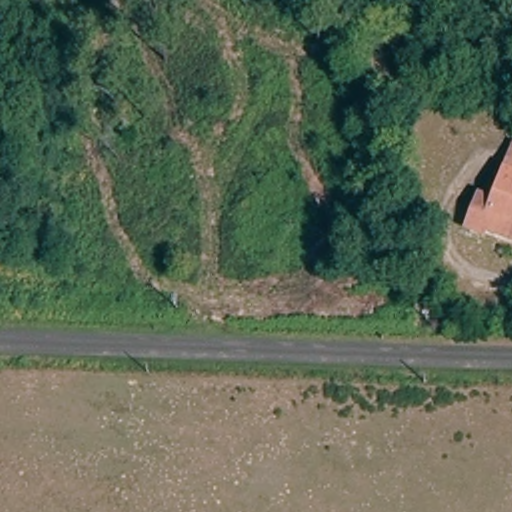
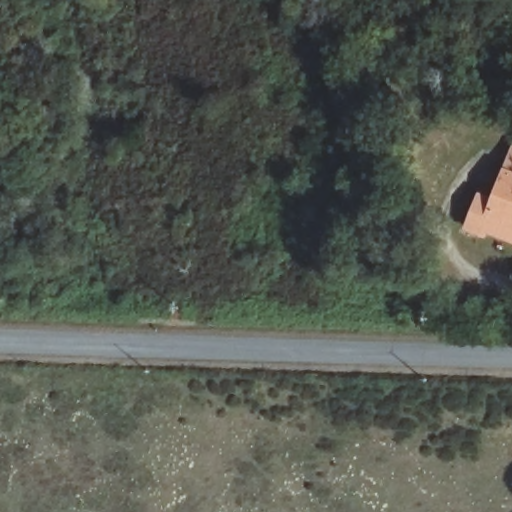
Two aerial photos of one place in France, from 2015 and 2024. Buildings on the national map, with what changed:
unchanged [(482,228),(463,220),(476,192),(495,198),(511,163),(512,161),(512,241),(482,228)]

